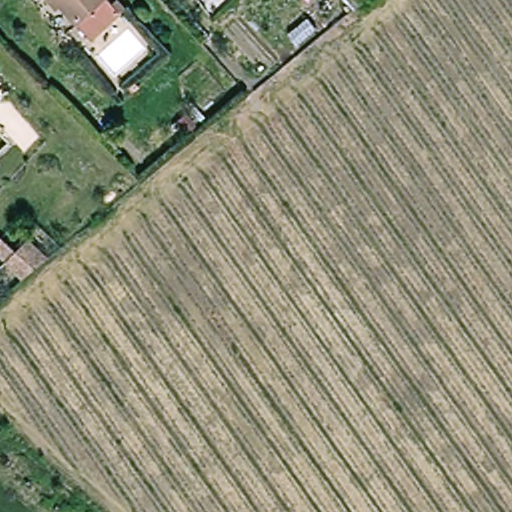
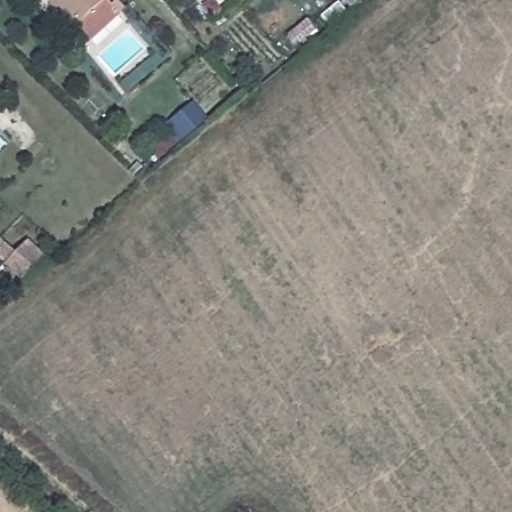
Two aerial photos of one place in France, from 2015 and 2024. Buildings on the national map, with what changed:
unchanged [(122,0),(130,10),(95,41),(66,9),(64,11),(54,0),(110,0),(116,6),(122,0)]
unchanged [(361,5),(350,13),(339,0),(357,0),(361,5)]
unchanged [(3,80),(0,82),(0,77),(3,80)]
unchanged [(201,136),(191,144),(174,123),(184,115),(201,136)]
unchanged [(34,241),(51,261),(39,270),(25,282),(8,265),(20,254),(34,241)]

